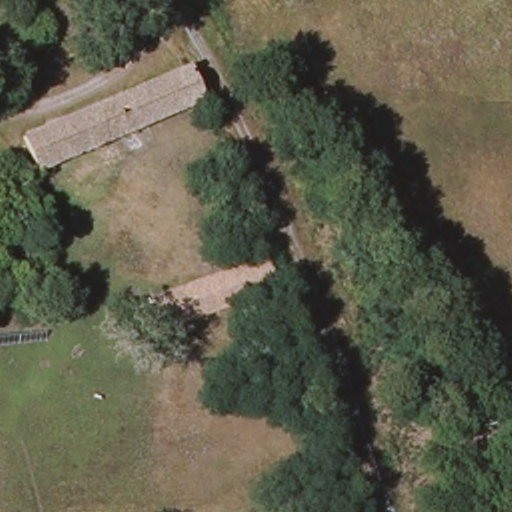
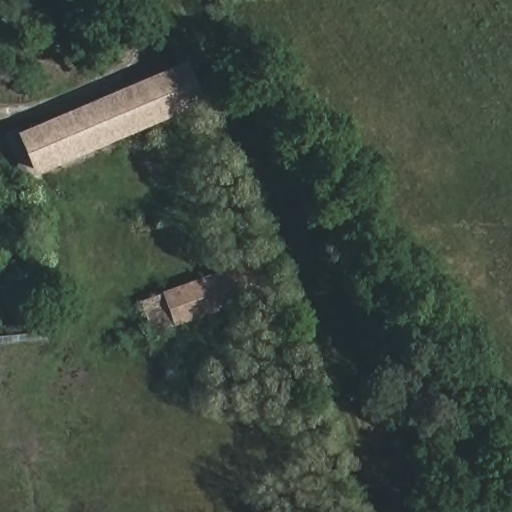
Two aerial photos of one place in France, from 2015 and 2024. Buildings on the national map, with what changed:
unchanged [(166,115),(153,82),(182,70),(195,102),(166,115)]
unchanged [(127,131),(114,99),(153,82),(166,115),(127,131)]
unchanged [(31,170),(18,140),(114,99),(127,131),(31,170)]
unchanged [(276,292),(157,335),(140,305),(263,257),(276,292)]

